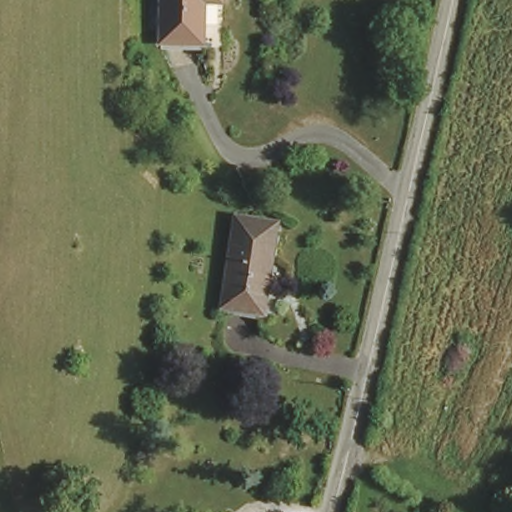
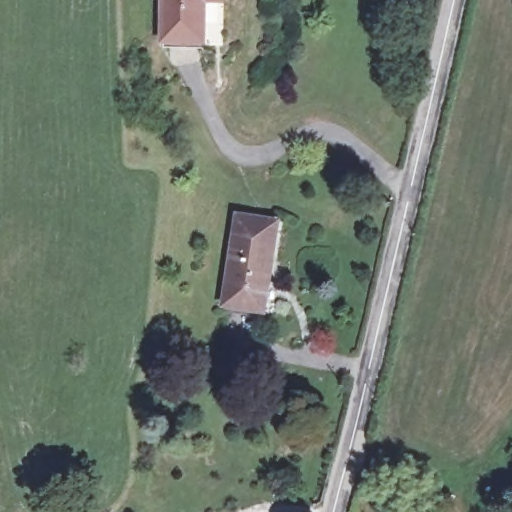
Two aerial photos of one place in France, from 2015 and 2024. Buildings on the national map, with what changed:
unchanged [(163,49),(163,41),(163,0),(202,0),(202,42),(201,50),(163,49)]
unchanged [(281,220),(276,257),(273,257),(264,312),(228,307),(242,215),(281,220)]

